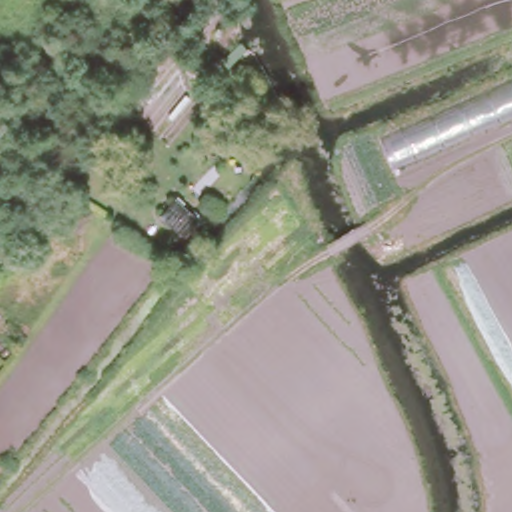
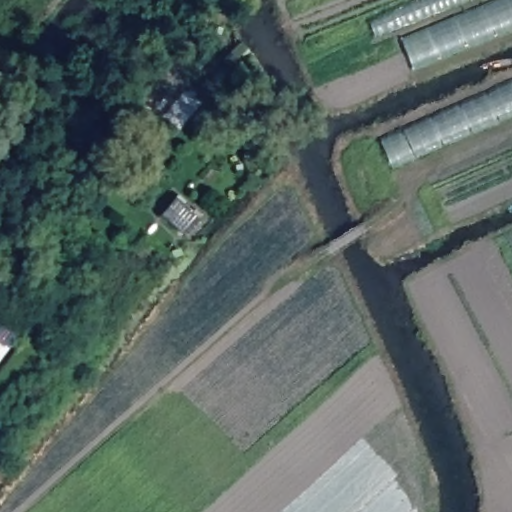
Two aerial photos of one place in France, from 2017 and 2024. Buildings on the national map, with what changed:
new [(399,30),(375,39),(369,21),(422,0),(512,0),(512,29),(414,68),(399,30)]
unchanged [(375,133),(512,76),(512,114),(393,165),(375,133)]
unchanged [(200,215),(184,235),(161,214),(175,195),(200,215)]
unchanged [(59,219),(67,207),(86,220),(77,233),(59,219)]

